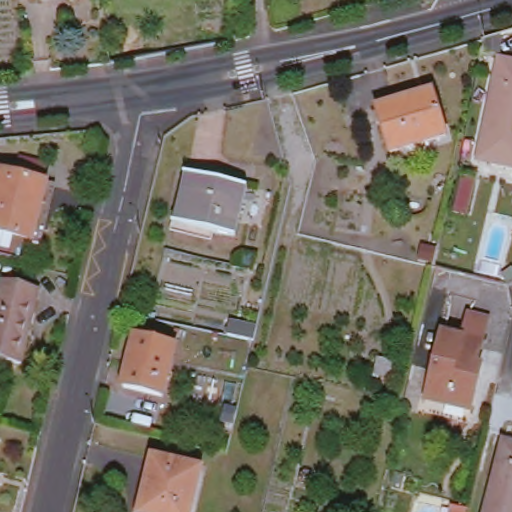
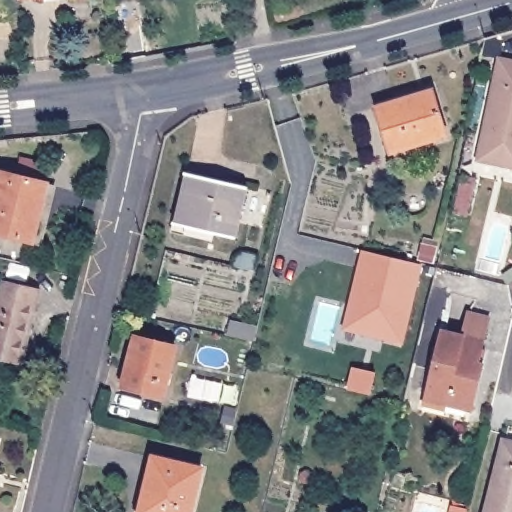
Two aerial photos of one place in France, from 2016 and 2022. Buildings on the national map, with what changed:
unchanged [(499,58),(512,61),(512,166),(490,162),(478,160),(482,144),(499,58)]
unchanged [(378,106),(412,96),(414,102),(434,96),(446,135),(392,152),(378,106)]
unchanged [(0,234),(0,176),(2,167),(19,172),(18,177),(49,184),(35,242),(0,234)]
unchanged [(465,211),(464,217),(453,214),(463,175),(475,177),(467,211),(465,211)]
unchanged [(240,240),(187,229),(179,227),(190,177),(198,180),(251,191),(240,240)]
new [(363,249),(422,262),(402,342),(344,328),(363,249)]
unchanged [(0,360),(0,301),(5,281),(42,290),(24,366),(0,360)]
unchanged [(429,393),(443,336),(461,340),(466,317),(485,322),(475,367),(477,367),(483,370),(472,415),(466,413),(446,408),(426,404),(429,393)]
unchanged [(125,386),(136,336),(174,345),(163,394),(125,386)]
unchanged [(505,437),(512,439),(512,512),(486,512),(505,437)]
unchanged [(152,475),(149,475),(154,455),(203,467),(200,480),(196,494),(194,507),(192,512),(143,512),(152,475)]

